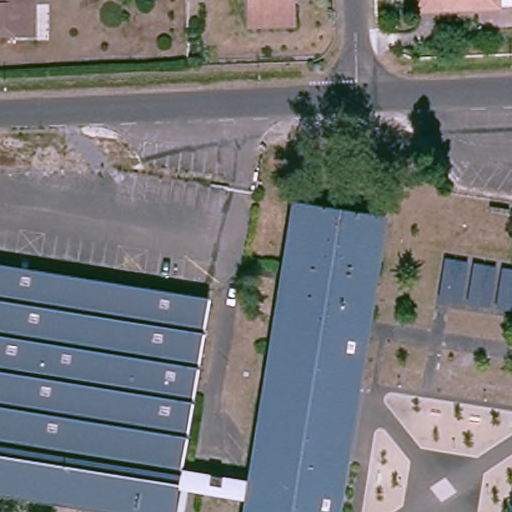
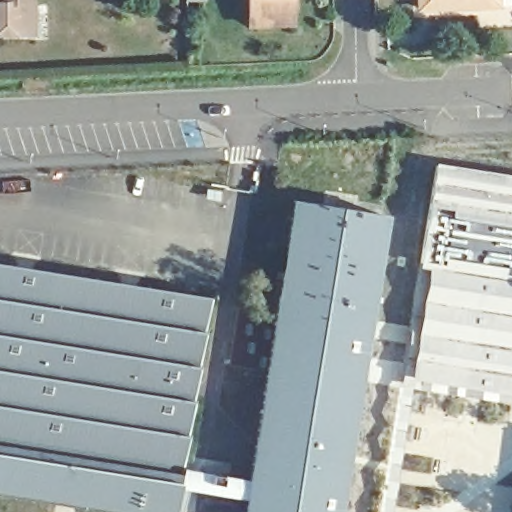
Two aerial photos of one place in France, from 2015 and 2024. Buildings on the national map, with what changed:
unchanged [(37,2),(37,33),(28,33),(0,35),(0,0),(37,0),(37,2)]
unchanged [(295,22),(255,26),(254,0),(293,0),(295,22)]
unchanged [(495,11),(421,13),(421,0),(495,0),(495,11)]
new [(454,339),(419,334),(428,268),(419,267),(435,164),(512,176),(512,373),(451,364),(454,339)]
unchanged [(390,213),(340,512),(249,512),(251,503),(255,480),(302,199),(390,213)]
unchanged [(123,512),(0,491),(0,265),(213,300),(204,356),(194,413),(187,469),(183,491),(180,512),(123,512)]
new [(451,364),(512,373),(512,405),(411,389),(419,334),(454,339),(451,364)]
unchanged [(187,469),(255,480),(251,503),(183,491),(187,469)]

